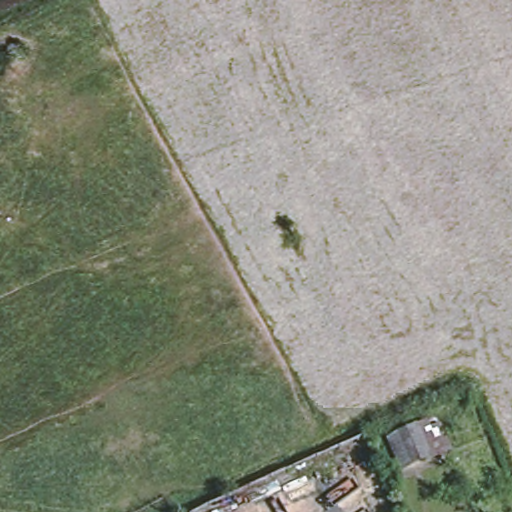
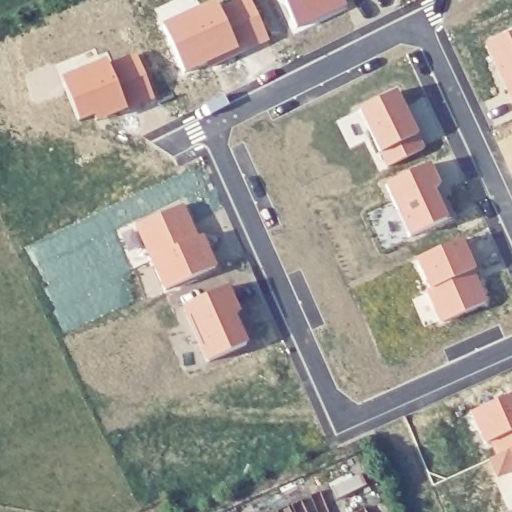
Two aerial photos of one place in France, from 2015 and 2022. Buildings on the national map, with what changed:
new [(210,68),(207,63),(186,73),(165,23),(213,0),(218,0),(220,5),(231,0),(253,0),(271,41),(210,68)]
new [(298,26),(286,0),(345,0),(347,4),(298,26)]
new [(512,30),(512,100),(483,41),(512,30)]
new [(108,58),(111,64),(137,53),(155,98),(97,123),(95,115),(80,120),(63,75),(108,58)]
new [(397,87),(427,147),(387,167),(358,105),(397,87)]
new [(431,160),(442,183),(435,186),(449,217),(410,234),(385,179),(431,160)]
new [(184,203),(199,237),(205,233),(219,265),(165,290),(135,224),(184,203)]
new [(465,237),(478,268),(474,269),(487,299),(441,321),(427,290),(431,289),(417,257),(465,237)]
new [(242,310),(237,313),(250,339),(207,359),(183,305),(230,283),(242,310)]
new [(512,393),(512,471),(498,476),(490,458),(495,456),(490,441),(483,443),(470,412),(512,393)]
unchanged [(398,472),(385,438),(423,419),(426,428),(436,424),(449,452),(398,472)]

